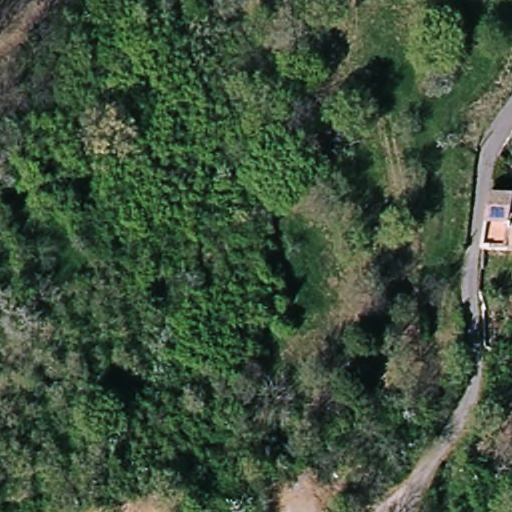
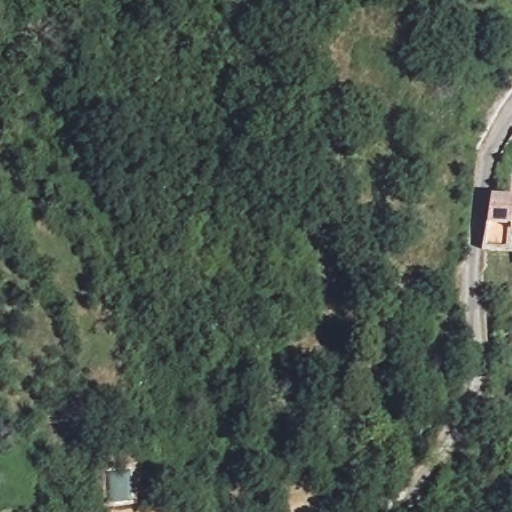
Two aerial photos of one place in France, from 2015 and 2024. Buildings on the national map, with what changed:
unchanged [(492,257),(495,243),(495,196),(512,198),(512,260),(492,257)]

